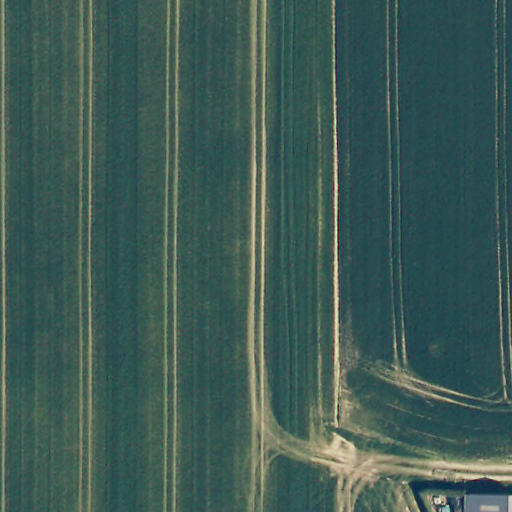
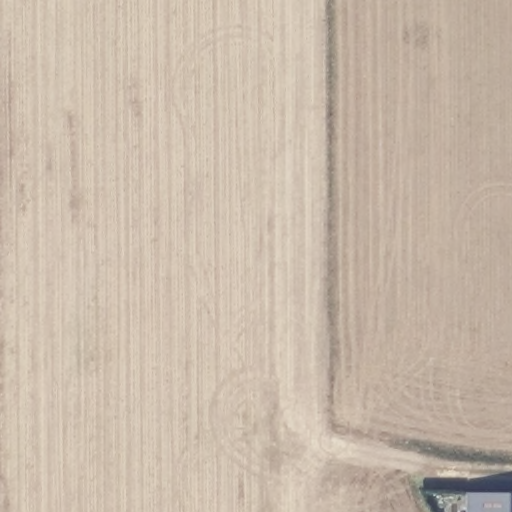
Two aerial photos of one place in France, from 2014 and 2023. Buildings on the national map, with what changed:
unchanged [(468,512),(468,495),(512,496),(512,512),(468,512)]

